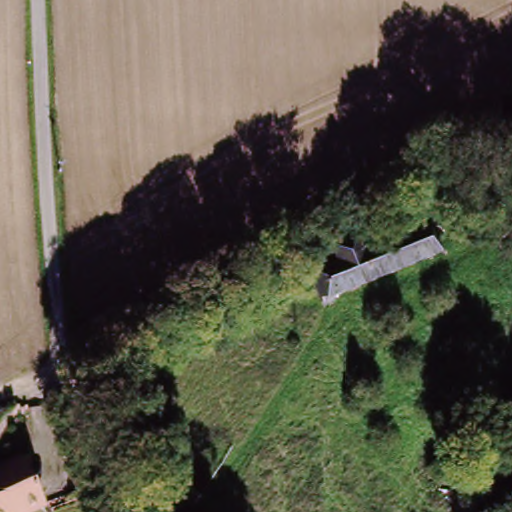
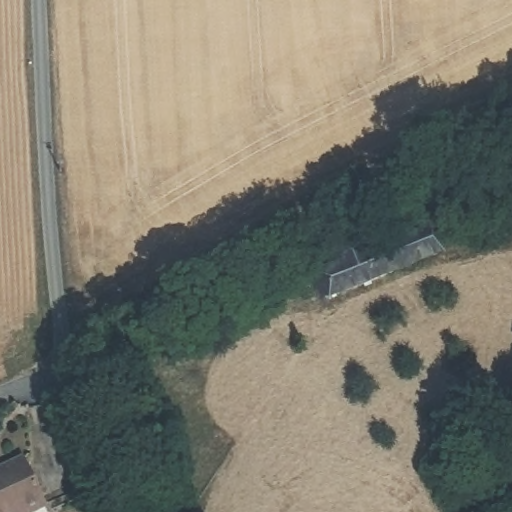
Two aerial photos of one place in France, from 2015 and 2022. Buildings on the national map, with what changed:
unchanged [(332,284),(324,290),(311,261),(323,257),(332,264),(433,226),(435,236),(451,232),(456,244),(344,291),(332,284)]
unchanged [(31,512),(0,512),(0,467),(18,459),(43,506),(31,512)]

